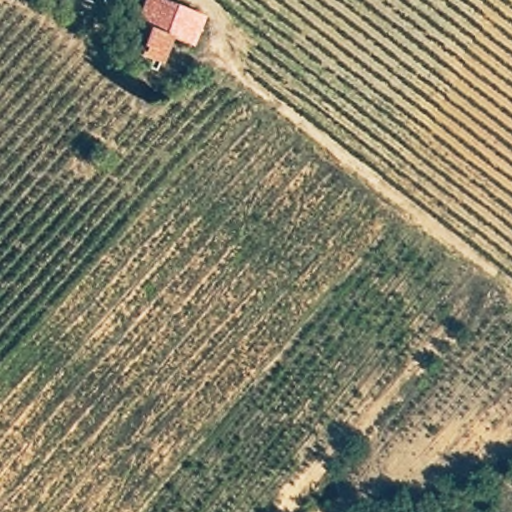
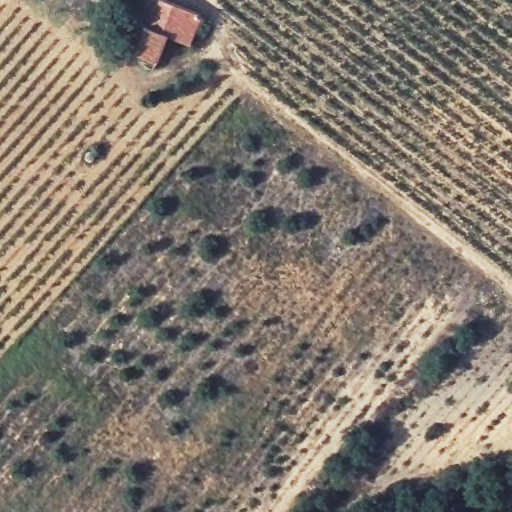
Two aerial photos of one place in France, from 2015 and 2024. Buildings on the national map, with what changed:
unchanged [(162,38),(157,64),(111,51),(123,15),(135,16),(139,0),(166,0),(205,13),(195,42),(162,38)]

